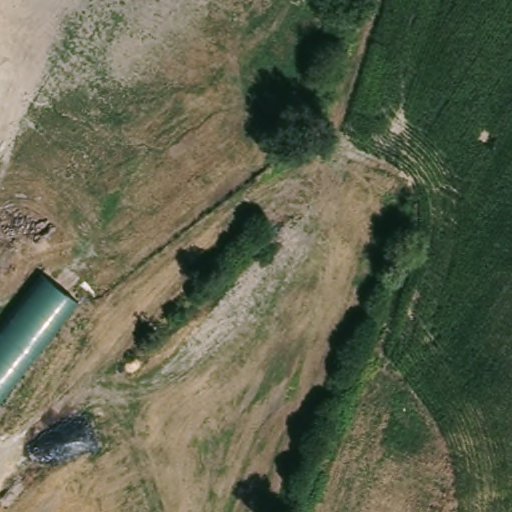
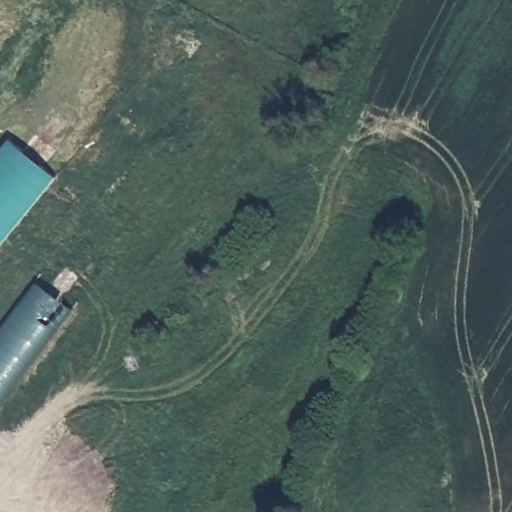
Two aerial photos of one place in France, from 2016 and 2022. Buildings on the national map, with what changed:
new [(12,140),(57,177),(0,247),(0,154),(12,140)]

